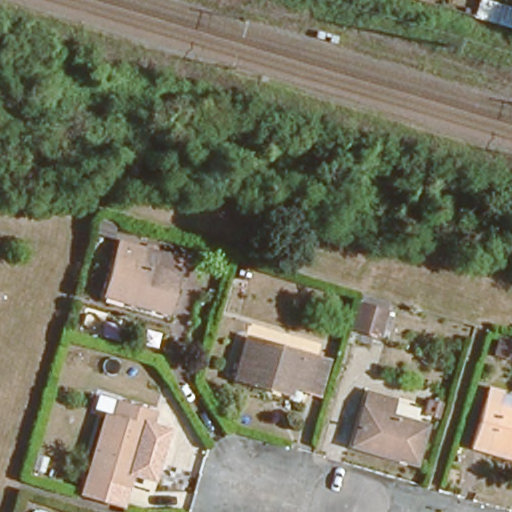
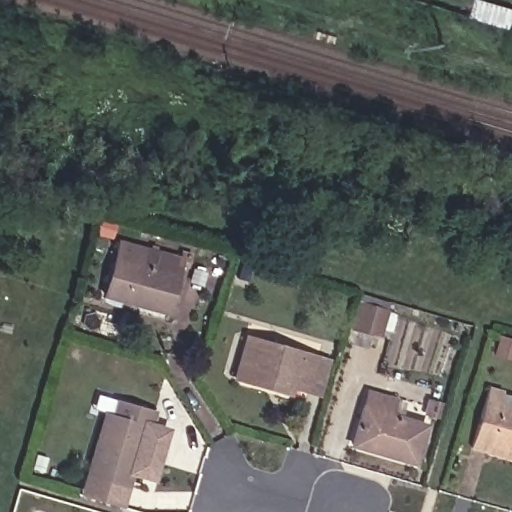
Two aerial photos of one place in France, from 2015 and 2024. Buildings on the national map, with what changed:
unchanged [(97,289),(113,237),(140,245),(179,257),(174,271),(163,308),(97,289)]
unchanged [(351,322),(360,295),(384,302),(376,330),(351,322)]
unchanged [(284,382),(282,390),(230,373),(243,333),(310,353),(326,358),(314,392),(299,387),(284,382)]
unchanged [(480,448),(464,443),(486,382),(501,387),(512,391),(512,459),(480,448)]
unchanged [(351,440),(367,388),(394,396),(390,412),(428,424),(416,460),(351,440)]
unchanged [(105,411),(113,414),(120,391),(161,407),(134,484),(82,471),(105,411)]

